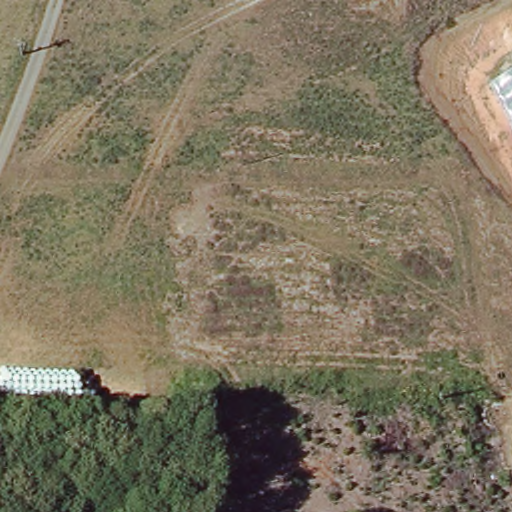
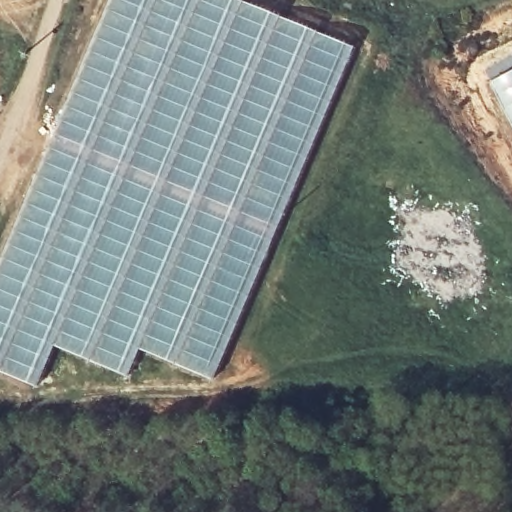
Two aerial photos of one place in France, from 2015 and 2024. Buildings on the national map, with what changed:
new [(211,380),(138,347),(126,376),(53,345),(33,386),(0,372),(0,259),(110,0),(240,0),(350,47),(211,380)]
unchanged [(512,71),(512,125),(490,82),(512,71)]
demolished [(512,371),(483,180),(512,177),(512,371)]

